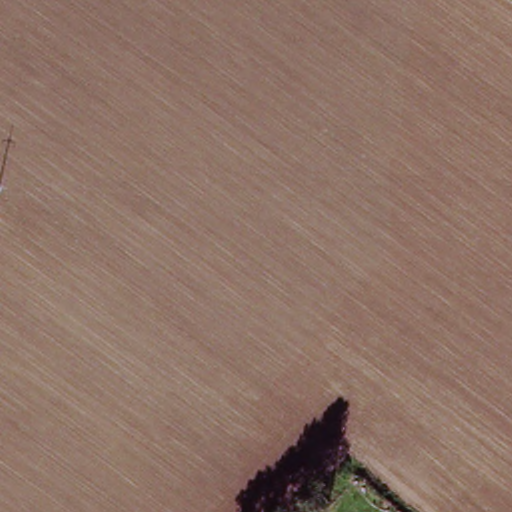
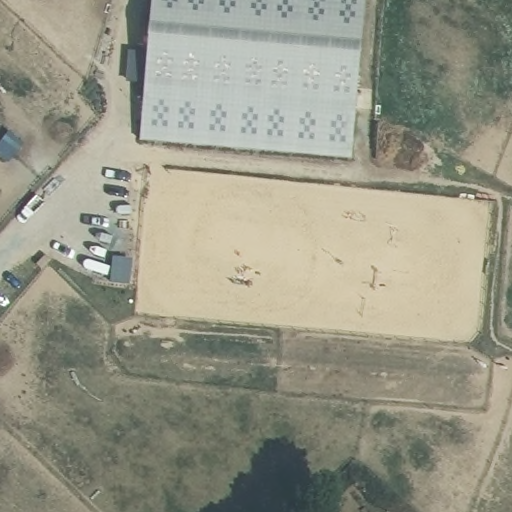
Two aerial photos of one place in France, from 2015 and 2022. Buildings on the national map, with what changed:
new [(140,141),(153,0),(366,0),(352,159),(140,141)]
new [(9,163),(0,156),(0,144),(10,132),(24,145),(9,163)]

